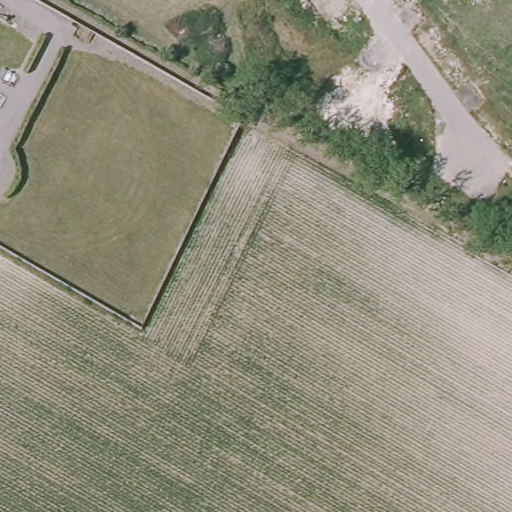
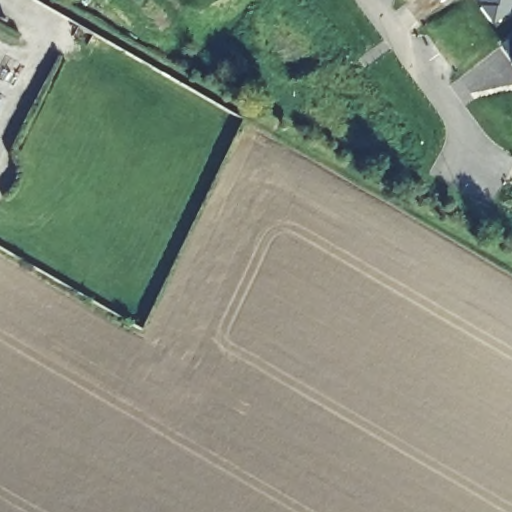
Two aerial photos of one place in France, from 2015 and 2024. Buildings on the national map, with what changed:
new [(478,15),(483,11),(474,0),(512,0),(512,15),(491,31),(478,15)]
new [(509,64),(512,61),(512,68),(509,64)]

